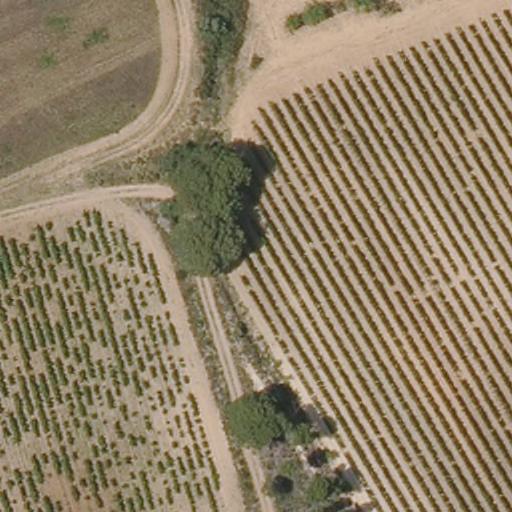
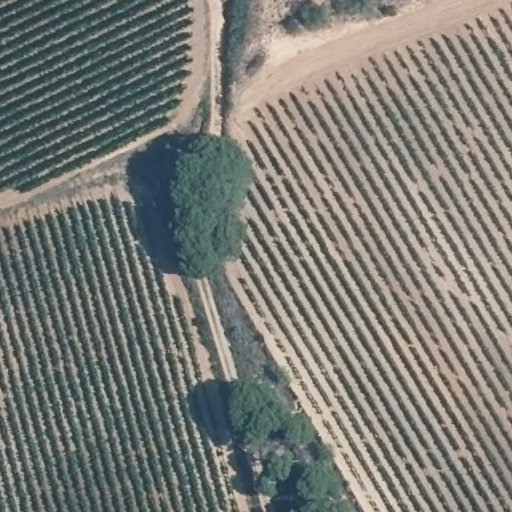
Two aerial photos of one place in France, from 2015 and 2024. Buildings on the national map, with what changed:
[]

